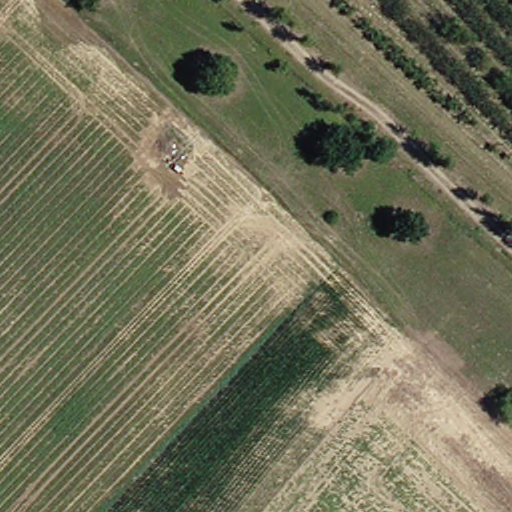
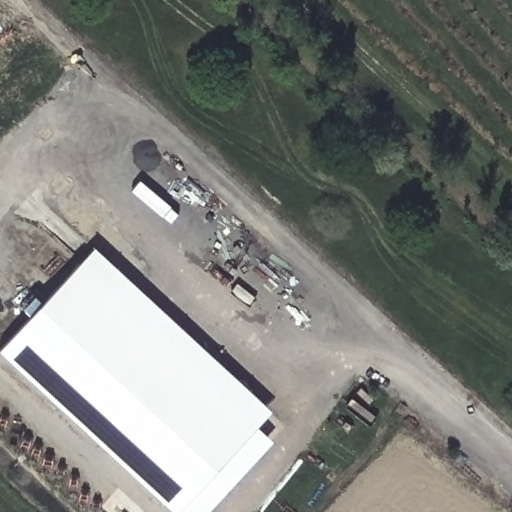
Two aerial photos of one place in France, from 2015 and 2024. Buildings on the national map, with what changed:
new [(179,512),(170,512),(0,355),(0,350),(94,249),(272,412),(179,512)]

